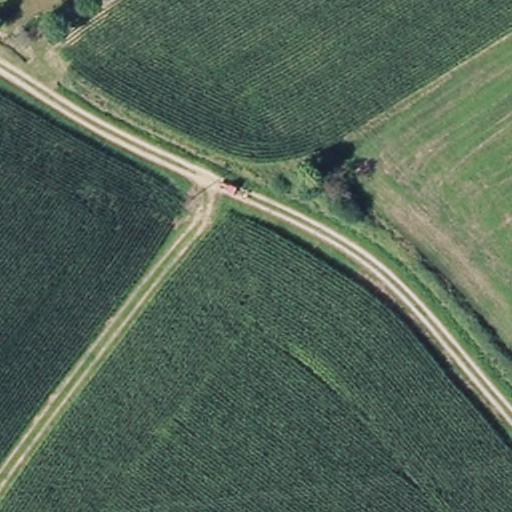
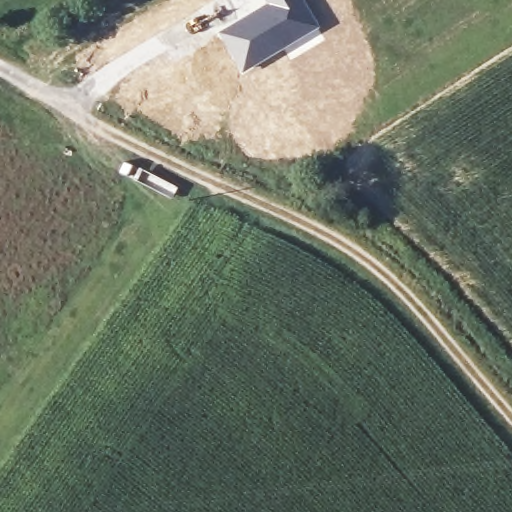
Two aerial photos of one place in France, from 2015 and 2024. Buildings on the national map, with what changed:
new [(267,0),(305,0),(322,27),(320,29),(323,35),(290,55),(286,49),(243,74),(219,32),(268,3),(267,0)]

